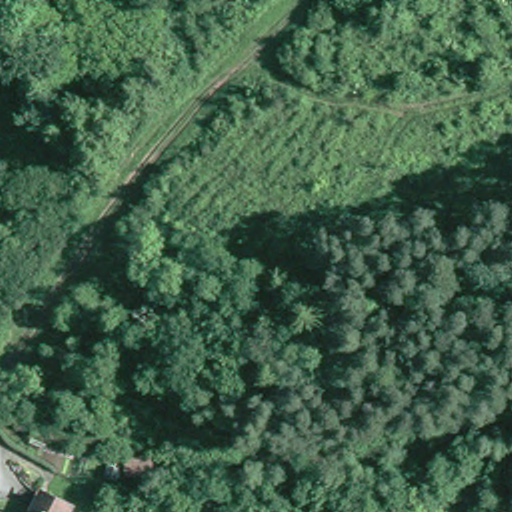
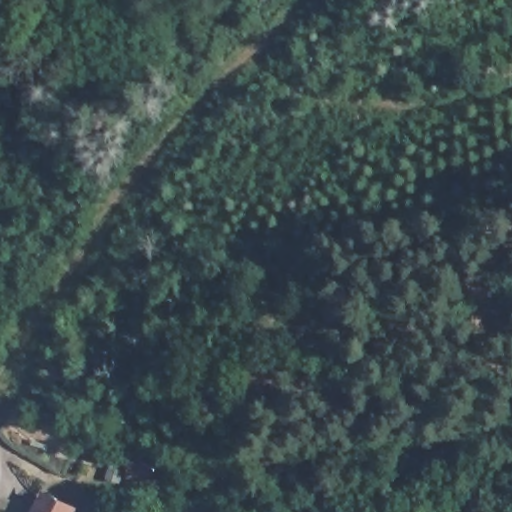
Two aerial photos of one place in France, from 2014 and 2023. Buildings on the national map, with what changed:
unchanged [(26,512),(35,488),(75,509),(74,512),(26,512)]
unchanged [(137,509),(135,512),(120,512),(110,505),(116,496),(137,509)]

